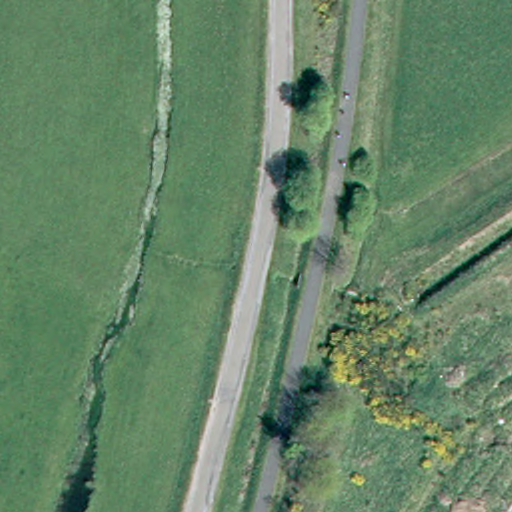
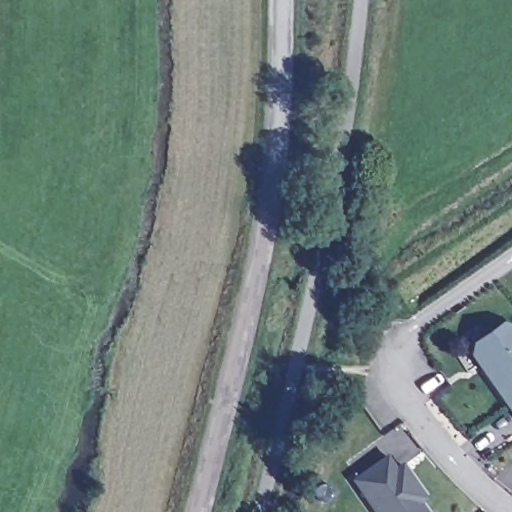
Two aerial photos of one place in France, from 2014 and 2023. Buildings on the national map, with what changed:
new [(472,345),(505,323),(512,325),(512,326),(512,413),(470,354),(472,345)]
new [(422,504),(429,512),(374,512),(352,480),(387,455),(395,468),(403,463),(427,500),(422,504)]

